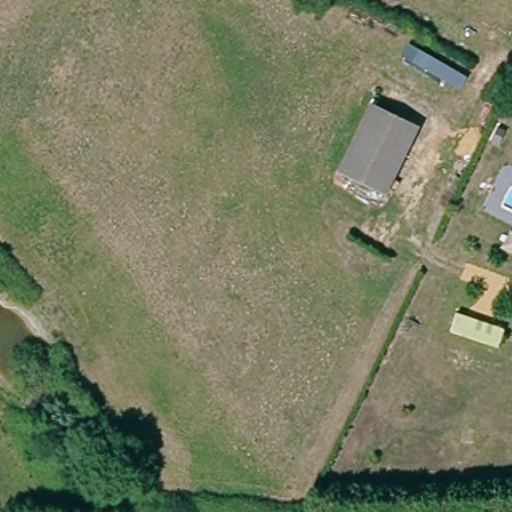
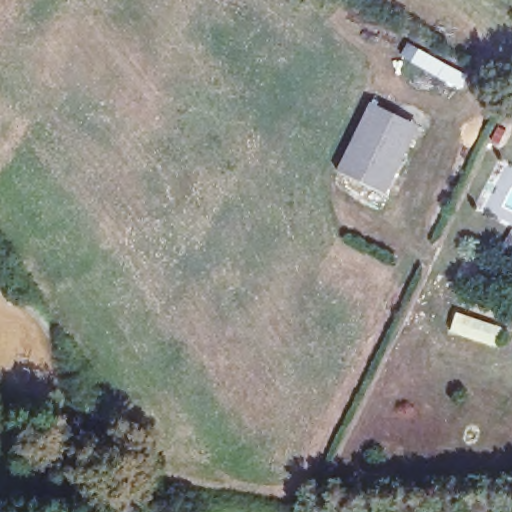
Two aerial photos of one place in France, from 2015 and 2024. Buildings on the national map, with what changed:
unchanged [(374,102),(421,125),(388,194),(340,171),(374,102)]

